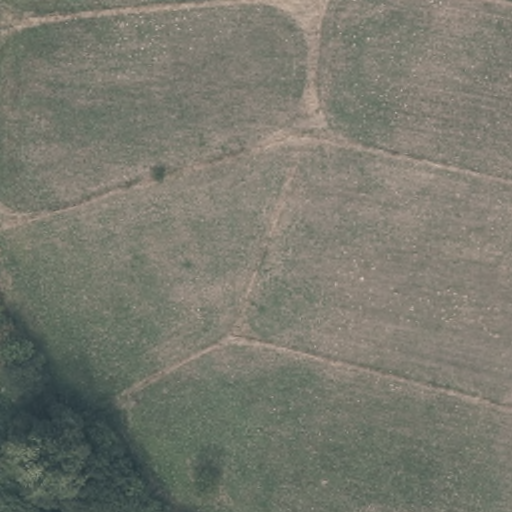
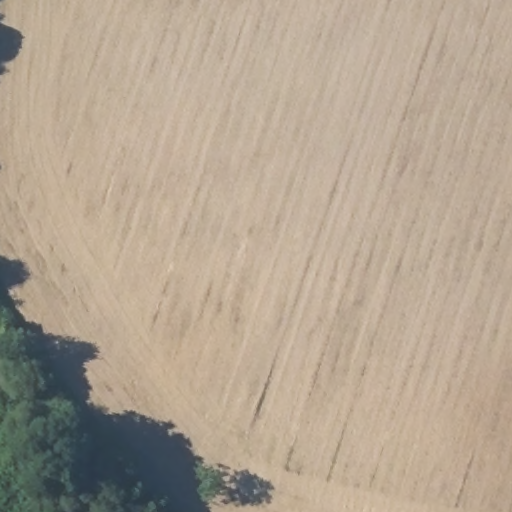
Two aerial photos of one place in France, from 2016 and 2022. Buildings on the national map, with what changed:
[]

